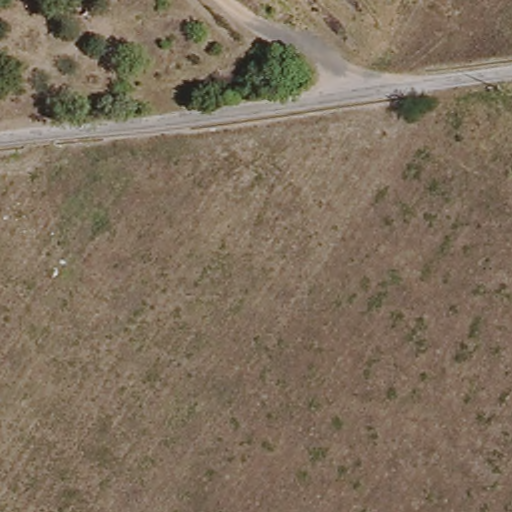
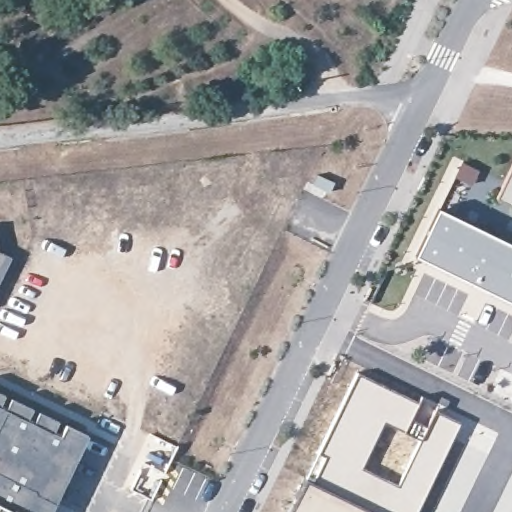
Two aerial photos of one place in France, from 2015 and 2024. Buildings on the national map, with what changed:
new [(498,195),(512,166),(512,201),(498,195)]
new [(477,279),(419,250),(441,206),(512,240),(512,296),(477,279)]
new [(0,278),(0,251),(12,256),(0,278)]
new [(417,512),(378,512),(314,481),(326,457),(319,453),(357,373),(461,423),(417,512)]
new [(48,512),(0,512),(0,392),(88,432),(48,512)]
new [(378,512),(288,512),(306,477),(378,512)]

